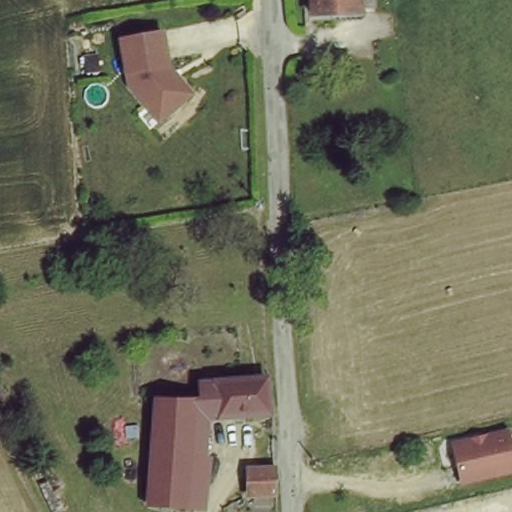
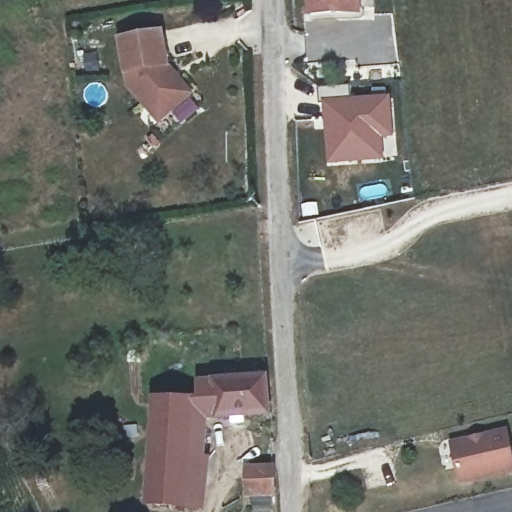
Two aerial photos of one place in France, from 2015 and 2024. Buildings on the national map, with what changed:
unchanged [(358,21),(307,26),(306,0),(367,0),(369,16),(357,16),(358,21)]
unchanged [(141,110),(124,88),(116,43),(158,36),(166,83),(174,82),(186,99),(163,118),(154,126),(141,110)]
new [(391,94),(395,138),(385,139),(386,161),(326,165),(321,98),(391,94)]
unchanged [(150,408),(199,404),(199,389),(266,384),(269,416),(194,423),(194,434),(207,434),(206,448),(192,447),(190,465),(206,466),(204,512),(145,512),(150,408)]
unchanged [(459,486),(448,436),(509,424),(512,435),(512,473),(459,486)]
unchanged [(245,497),(247,473),(273,474),(272,499),(245,497)]

